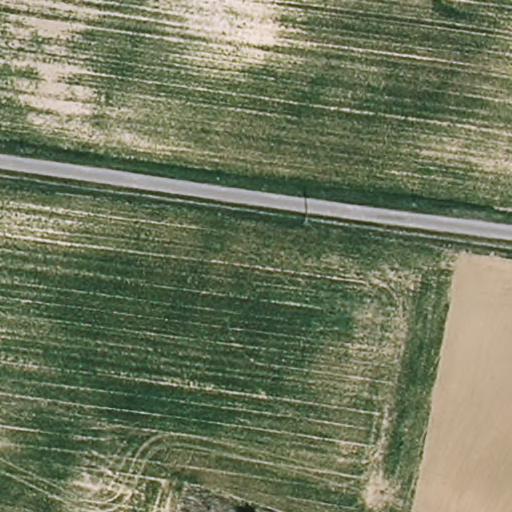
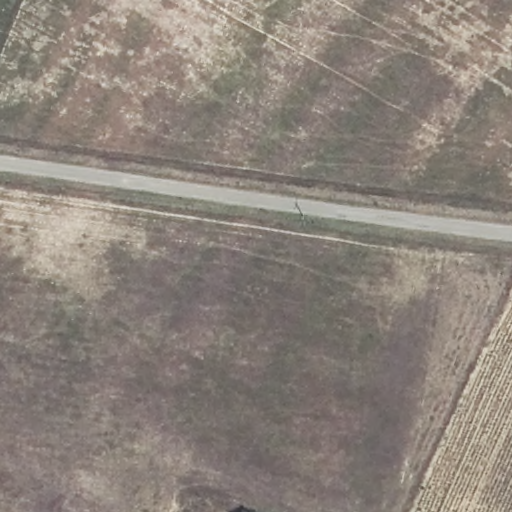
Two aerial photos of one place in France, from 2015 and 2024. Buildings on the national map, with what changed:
[]

